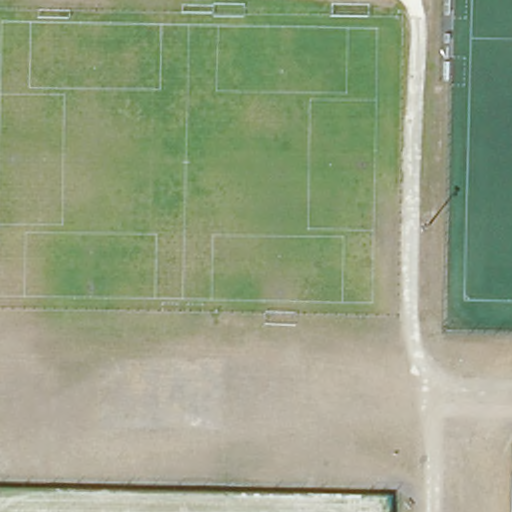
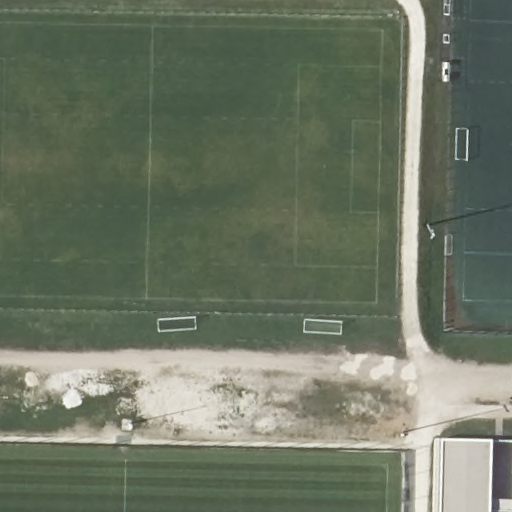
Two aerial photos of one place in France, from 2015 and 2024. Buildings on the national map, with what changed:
new [(490,512),(438,512),(440,441),(492,442),(490,512)]
unchanged [(512,481),(512,512),(511,512),(512,481)]

